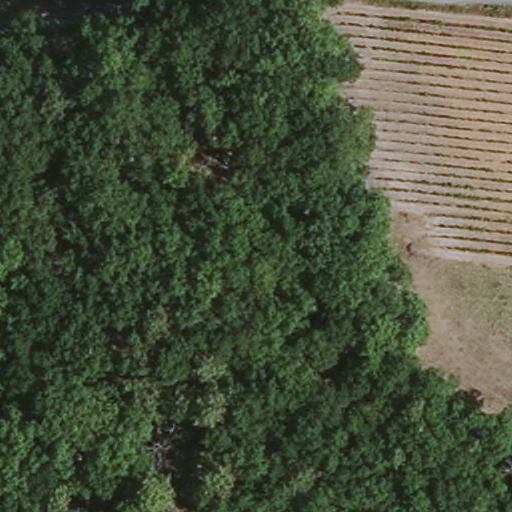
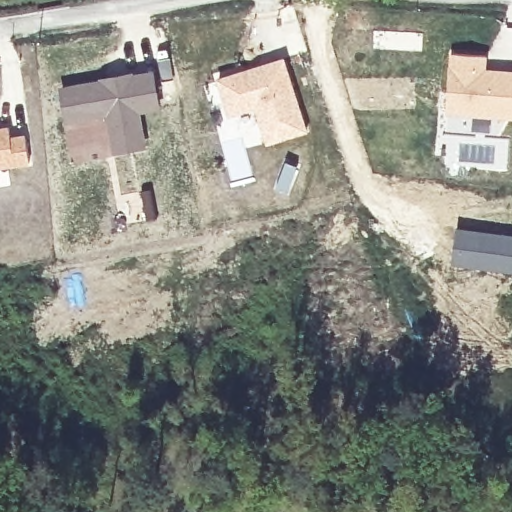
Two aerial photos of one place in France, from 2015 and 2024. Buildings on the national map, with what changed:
new [(512,70),(512,118),(446,114),(450,52),(488,55),(487,68),(512,70)]
new [(286,56),(308,130),(270,142),(258,106),(233,115),(220,77),(286,56)]
new [(115,74),(154,68),(161,109),(142,113),(147,149),(70,165),(57,86),(115,74)]
new [(11,134),(26,133),(30,164),(0,168),(0,126),(9,124),(11,134)]
new [(455,226),(512,233),(512,274),(450,264),(455,226)]

